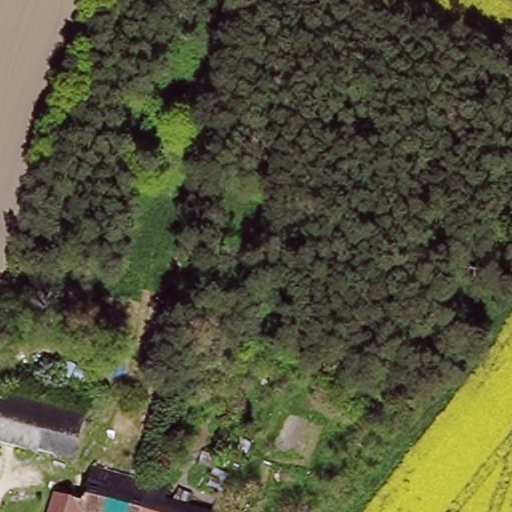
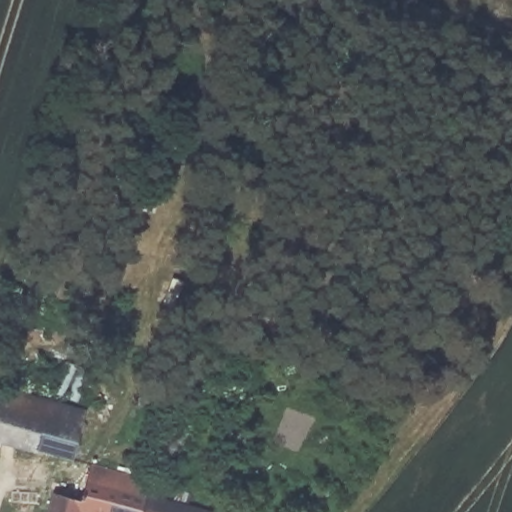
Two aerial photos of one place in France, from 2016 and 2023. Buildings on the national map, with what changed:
unchanged [(88,409),(83,428),(53,419),(0,402),(0,383),(88,409)]
unchanged [(42,450),(40,456),(0,444),(0,402),(53,419),(42,450)]
unchanged [(83,428),(73,460),(42,450),(53,419),(83,428)]
unchanged [(142,512),(78,512),(81,502),(91,469),(150,486),(142,512)]
unchanged [(193,512),(142,512),(150,486),(166,491),(163,503),(193,512)]
unchanged [(55,495),(81,502),(78,512),(50,512),(55,495)]

